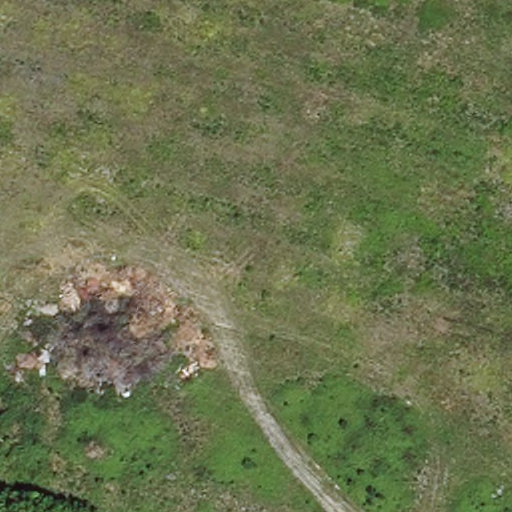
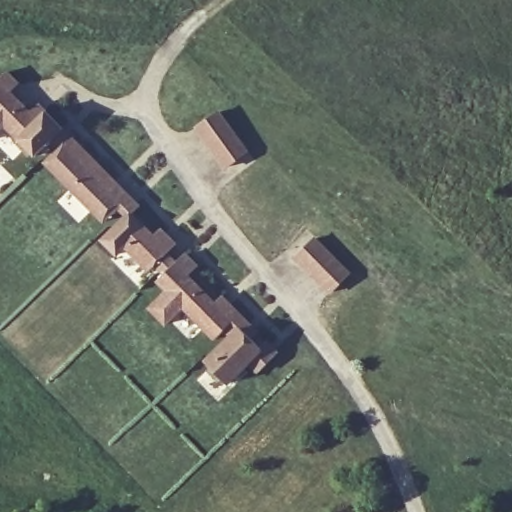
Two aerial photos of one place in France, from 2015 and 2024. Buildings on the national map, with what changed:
new [(35,117),(43,109),(61,127),(32,153),(1,121),(0,123),(0,81),(35,117)]
new [(217,111),(245,150),(223,166),(194,127),(217,111)]
new [(68,134),(95,161),(87,168),(120,203),(101,219),(43,161),(68,134)]
new [(129,211),(167,250),(147,270),(122,247),(114,254),(100,239),(129,211)]
new [(312,238),(347,273),(327,292),(293,257),(312,238)]
new [(164,291),(155,280),(173,263),(231,323),(212,340),(180,307),(163,324),(147,309),(164,291)]
new [(238,329),(258,351),(223,384),(203,363),(238,329)]

